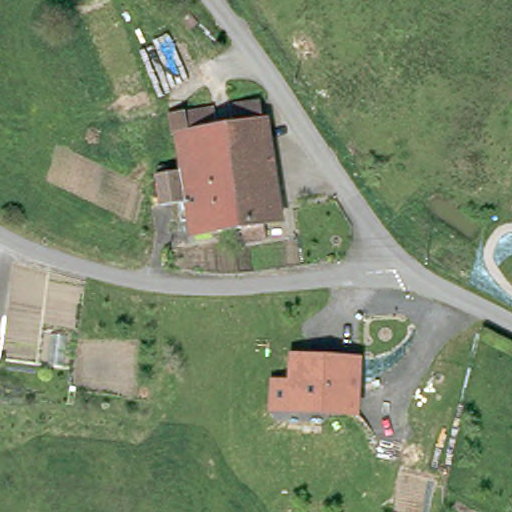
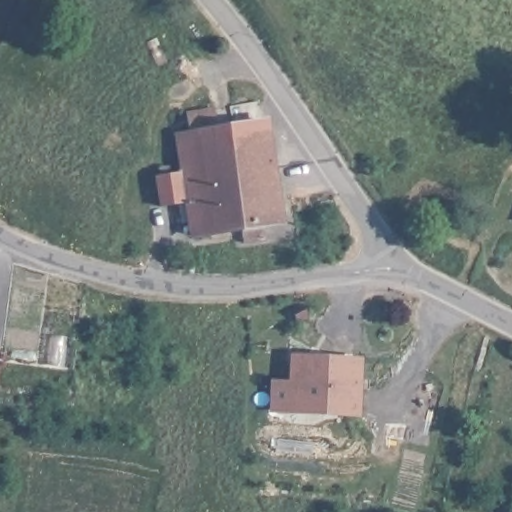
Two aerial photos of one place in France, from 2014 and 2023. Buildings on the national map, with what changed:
unchanged [(161,202),(157,171),(161,171),(160,165),(171,164),(171,169),(185,167),(180,130),(190,128),(187,109),(215,105),(217,124),(234,122),(232,102),(261,98),(263,118),(267,117),(282,217),(265,220),(267,235),(246,238),(242,224),(195,232),(192,217),(183,218),(180,199),(161,202)]
unchanged [(270,410),(270,380),(289,378),(290,353),(360,357),(360,362),(357,414),(270,410)]

